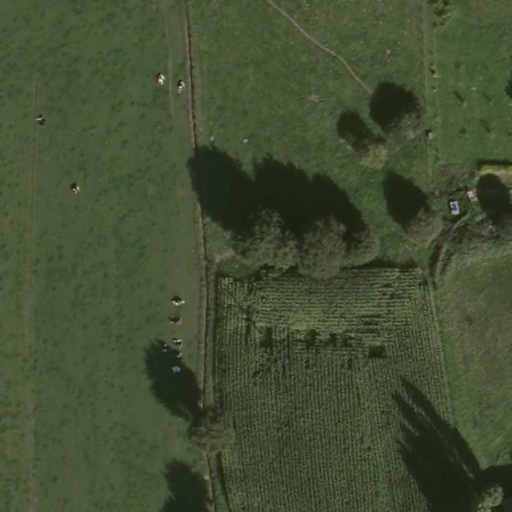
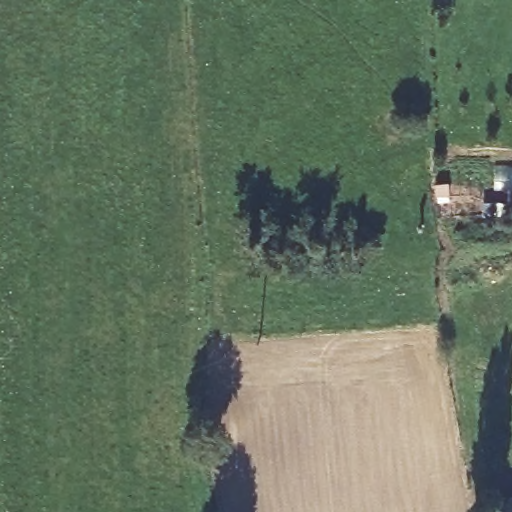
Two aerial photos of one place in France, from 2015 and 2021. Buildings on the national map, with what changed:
unchanged [(491,512),(490,506),(512,501),(512,512),(491,512)]

